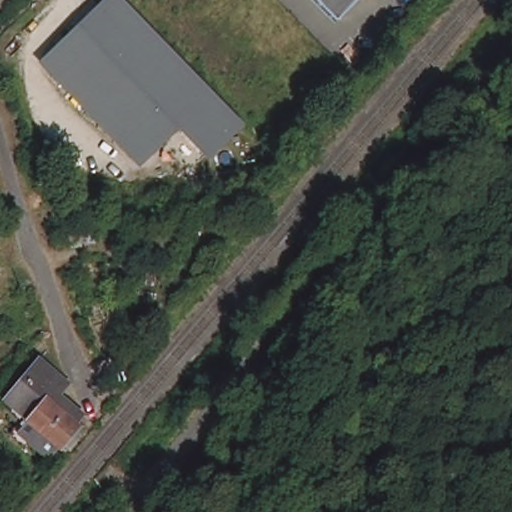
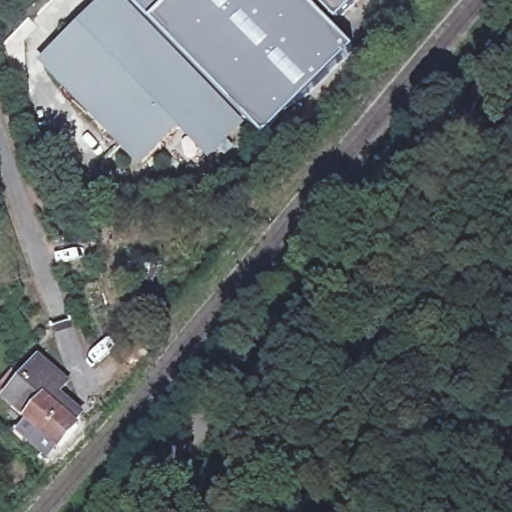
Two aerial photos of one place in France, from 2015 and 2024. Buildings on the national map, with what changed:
unchanged [(213,160),(182,131),(143,168),(44,63),(110,0),(127,0),(246,126),(213,160)]
new [(357,48),(260,141),(246,126),(150,24),(127,0),(314,0),(338,25),(357,48)]
unchanged [(314,0),(365,0),(338,25),(314,0)]
unchanged [(122,367),(113,358),(133,339),(142,348),(122,367)]
unchanged [(17,434),(28,421),(17,411),(20,408),(11,399),(45,359),(75,384),(65,396),(83,412),(88,416),(86,419),(80,425),(83,428),(67,447),(62,443),(52,455),(35,440),(31,445),(17,434)]
unchanged [(22,373),(3,397),(0,394),(0,392),(18,369),(22,373)]

